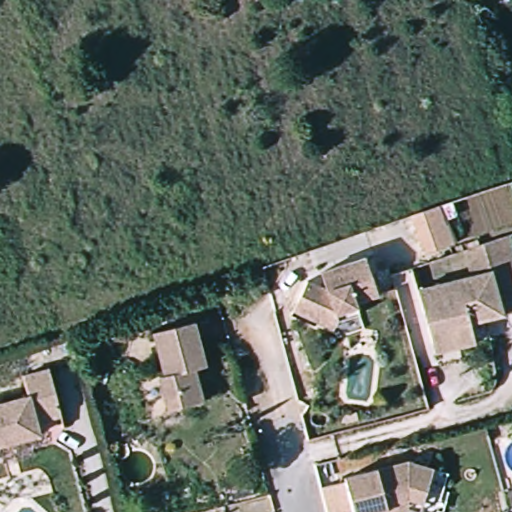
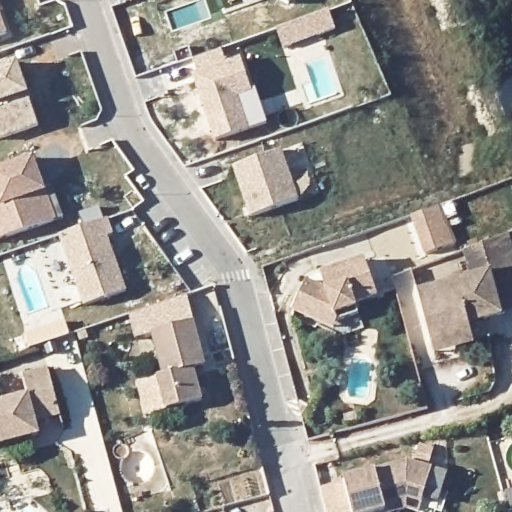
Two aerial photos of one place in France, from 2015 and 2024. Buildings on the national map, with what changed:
new [(242,3),(242,0),(251,0),(242,3)]
new [(288,10),(270,0),(293,0),(288,10)]
new [(7,37),(0,39),(0,15),(7,37)]
new [(328,16),(334,35),(319,40),(282,53),(275,34),(312,21),(328,16)]
new [(220,49),(225,65),(240,59),(250,91),(235,96),(247,130),(215,141),(192,75),(196,74),(191,59),(220,49)]
new [(18,64),(29,95),(31,103),(39,126),(0,139),(0,70),(18,64)]
new [(278,154),(296,204),(248,220),(231,170),(278,154)]
new [(32,161),(43,192),(50,190),(60,220),(53,223),(4,240),(0,241),(0,171),(32,161)]
new [(84,225),(80,214),(98,207),(102,219),(84,225)]
unchanged [(421,250),(411,221),(436,212),(445,240),(421,250)]
new [(108,219),(115,234),(106,236),(126,291),(83,306),(58,235),(108,219)]
unchanged [(466,269),(463,249),(505,233),(512,258),(512,318),(494,327),(473,333),(476,345),(427,361),(411,286),(466,269)]
unchanged [(293,296),(300,276),(321,285),(320,274),(361,258),(374,293),(352,301),(355,311),(335,317),(332,311),(318,317),(311,314),(290,306),(293,296)]
new [(65,320),(70,335),(30,349),(25,333),(65,320)]
unchanged [(193,373),(201,402),(166,411),(158,381),(162,380),(153,337),(195,328),(205,370),(193,373)]
unchanged [(52,403),(27,410),(33,435),(0,444),(0,404),(22,398),(16,376),(44,370),(52,403)]
unchanged [(345,474),(345,471),(405,456),(433,464),(425,496),(407,491),(385,496),(385,501),(355,509),(342,512),(332,512),(323,480),(345,474)]

